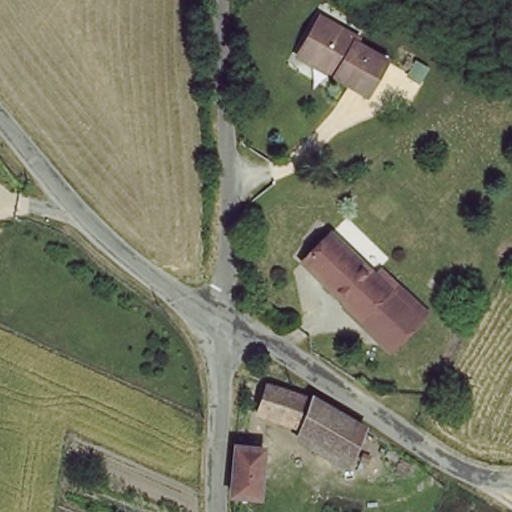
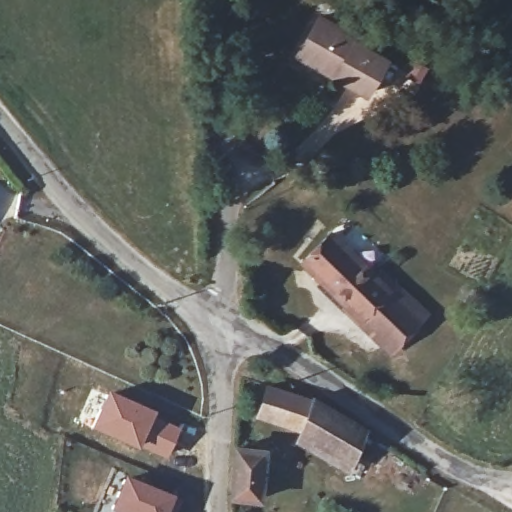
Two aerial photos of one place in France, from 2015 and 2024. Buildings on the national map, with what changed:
unchanged [(296,43),(313,13),(351,35),(349,40),(381,58),(362,92),(329,73),(292,51),(296,43)]
unchanged [(292,264),(317,232),(369,276),(383,287),(358,319),(292,264)]
unchanged [(420,308),(389,345),(358,319),(383,287),(369,276),(375,270),(420,308)]
unchanged [(308,396),(361,426),(350,478),(294,448),(294,433),(256,425),(262,384),(308,396)]
new [(105,392),(140,407),(181,429),(164,458),(137,448),(135,451),(88,429),(105,392)]
unchanged [(238,497),(244,460),(245,451),(261,453),(255,501),(238,497)]
new [(123,476),(172,497),(181,501),(175,512),(114,512),(108,510),(123,476)]

